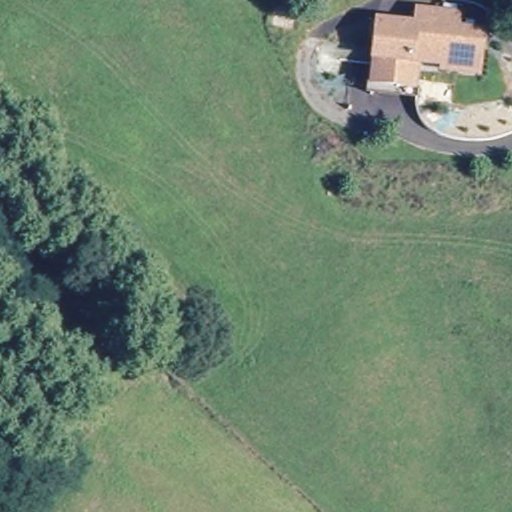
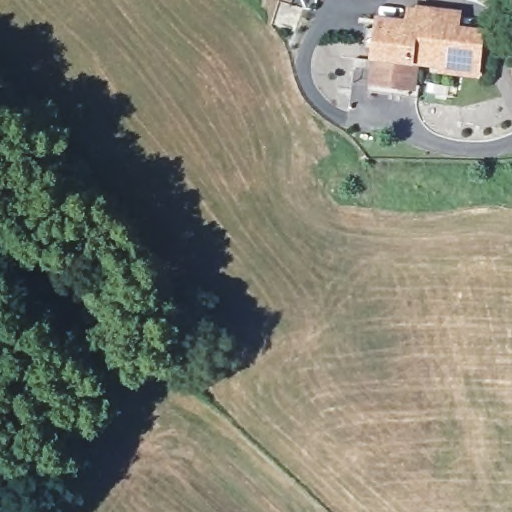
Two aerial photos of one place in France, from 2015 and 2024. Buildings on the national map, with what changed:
unchanged [(375,85),(380,21),(416,24),(417,7),(457,10),(456,26),(482,28),(481,53),(480,70),(445,68),(445,63),(418,61),(417,87),(416,98),(375,95),(375,85)]

